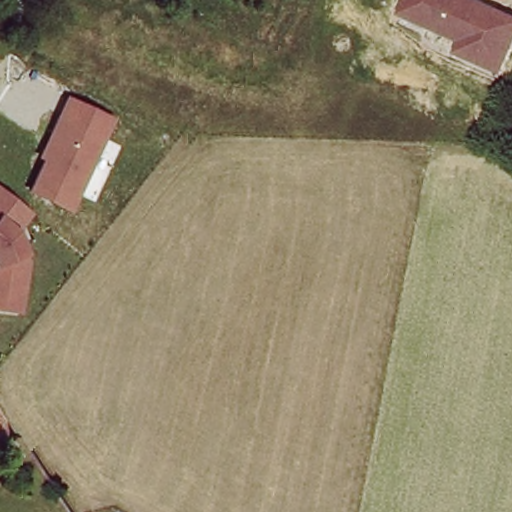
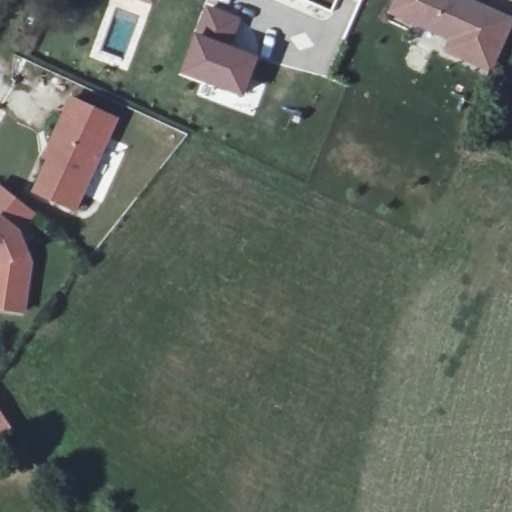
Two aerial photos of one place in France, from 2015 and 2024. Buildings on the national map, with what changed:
new [(140,0),(159,0),(156,6),(140,0)]
unchanged [(476,0),(512,16),(512,30),(491,75),(447,54),(452,42),(390,12),(396,0),(476,0)]
new [(199,34),(208,7),(242,21),(231,45),(261,59),(246,97),(183,72),(199,34)]
unchanged [(121,119),(79,213),(33,192),(47,162),(42,159),(73,96),(121,119)]
unchanged [(25,234),(35,264),(28,314),(0,310),(0,185),(37,212),(25,234)]
unchanged [(15,445),(0,455),(0,422),(15,445)]

